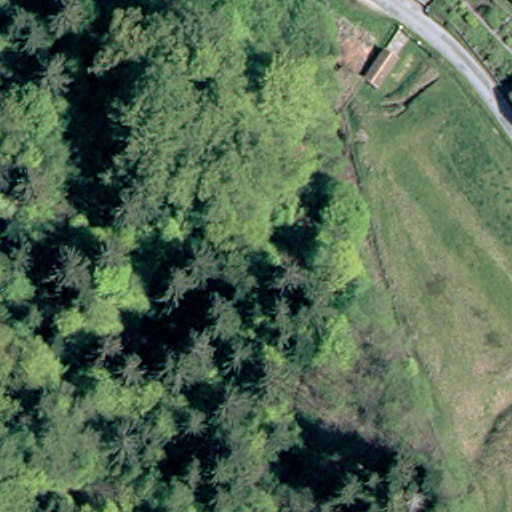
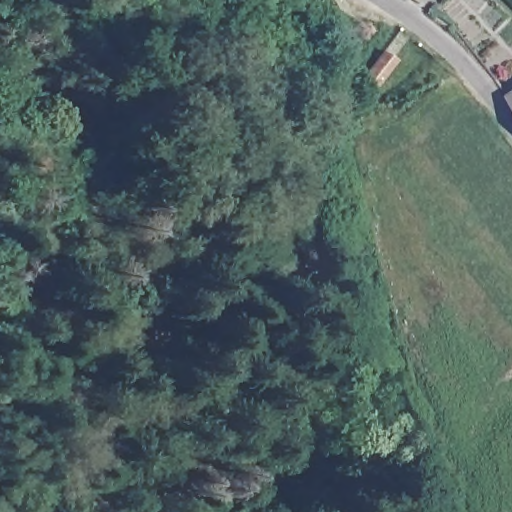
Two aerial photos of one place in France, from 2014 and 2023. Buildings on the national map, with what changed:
unchanged [(379,43),(391,51),(373,79),(360,71),(379,43)]

